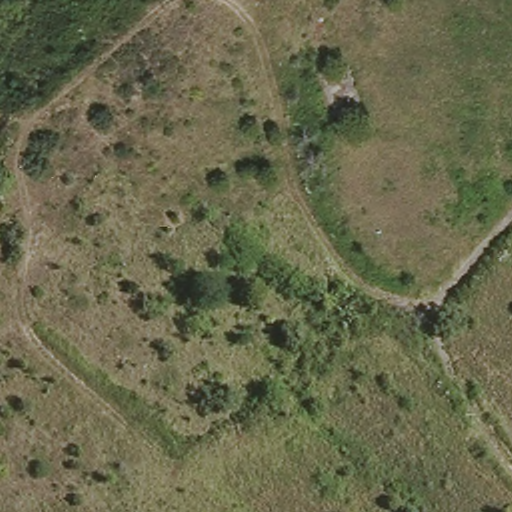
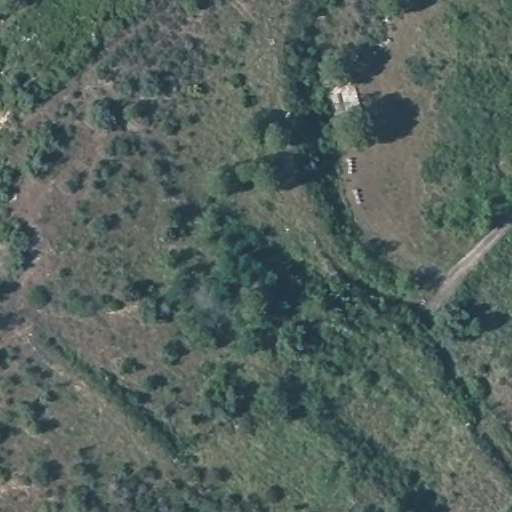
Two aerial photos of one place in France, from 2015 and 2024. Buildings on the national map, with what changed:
unchanged [(329,82),(331,107),(313,108),(311,85),(329,82)]

